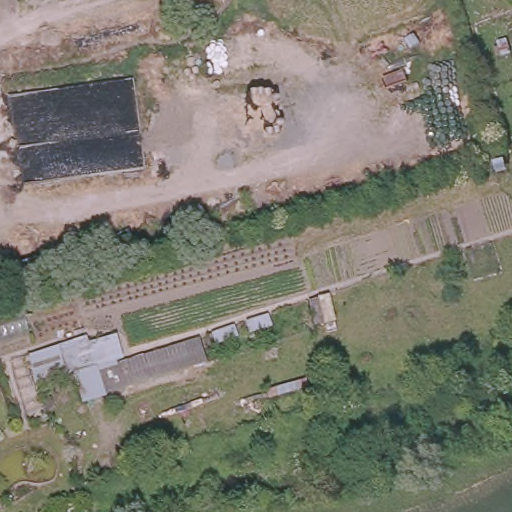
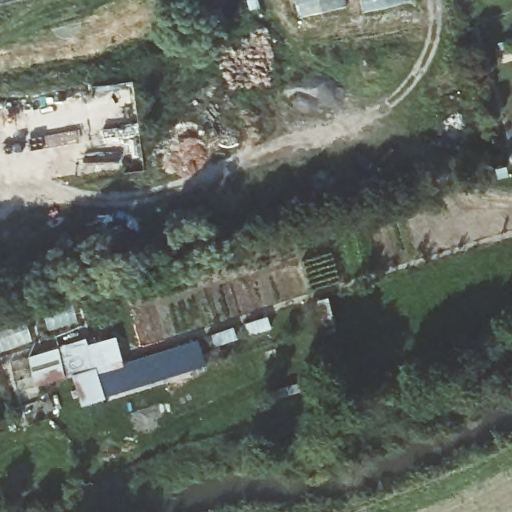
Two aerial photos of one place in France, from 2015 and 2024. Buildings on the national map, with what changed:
new [(293,0),(350,0),(352,9),(298,21),(293,0)]
new [(410,1),(363,14),(360,0),(410,0),(410,1)]
unchanged [(85,336),(87,345),(115,335),(124,361),(199,338),(208,364),(80,405),(72,373),(32,384),(26,355),(85,336)]

